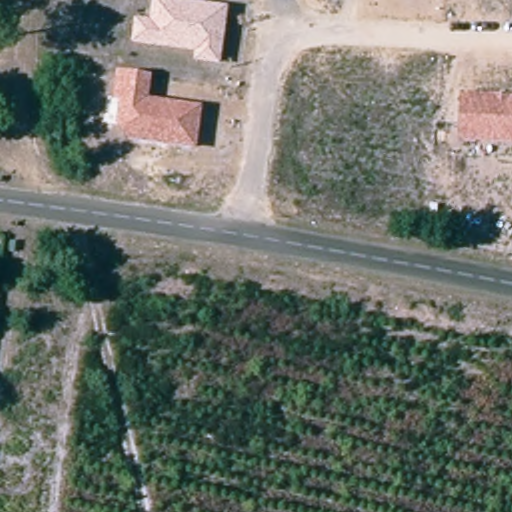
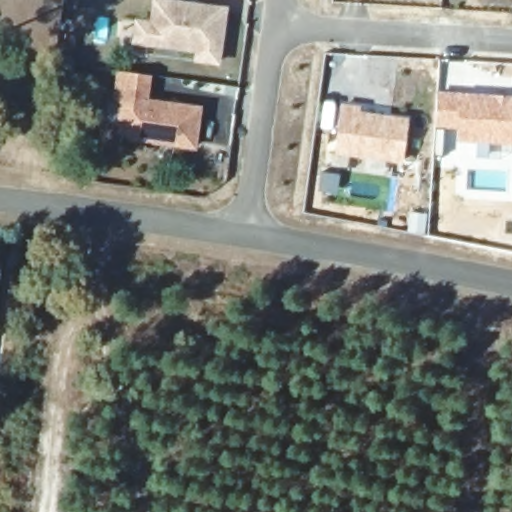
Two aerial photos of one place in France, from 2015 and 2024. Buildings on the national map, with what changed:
unchanged [(228,5),(220,63),(193,60),(194,51),(130,42),(134,16),(149,18),(150,0),(189,0),(228,5)]
unchanged [(151,74),(149,96),(202,104),(198,147),(129,138),(116,124),(118,97),(113,97),(116,68),(151,74)]
unchanged [(512,94),(512,143),(457,139),(460,91),(512,94)]
new [(409,117),(404,163),(335,154),(342,103),(362,105),(362,111),(409,117)]

